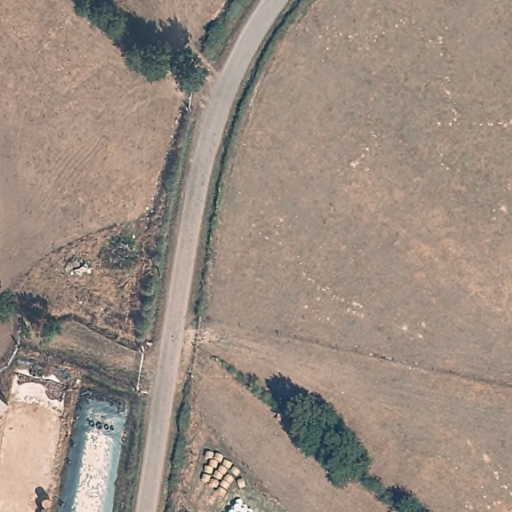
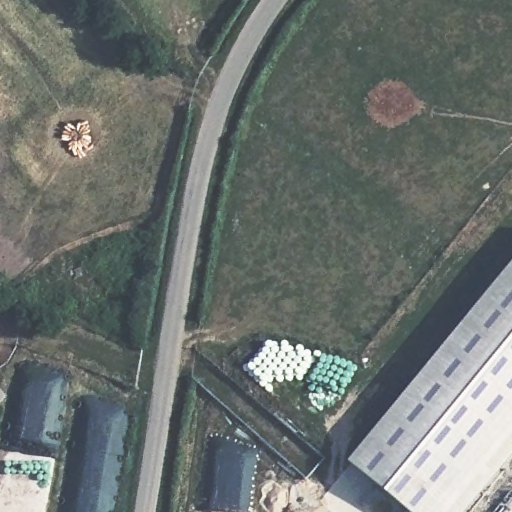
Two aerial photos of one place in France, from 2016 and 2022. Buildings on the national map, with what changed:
new [(348,464),(512,264),(512,458),(468,512),(406,512),(348,464)]
unchanged [(7,399),(0,407),(0,391),(7,399)]

